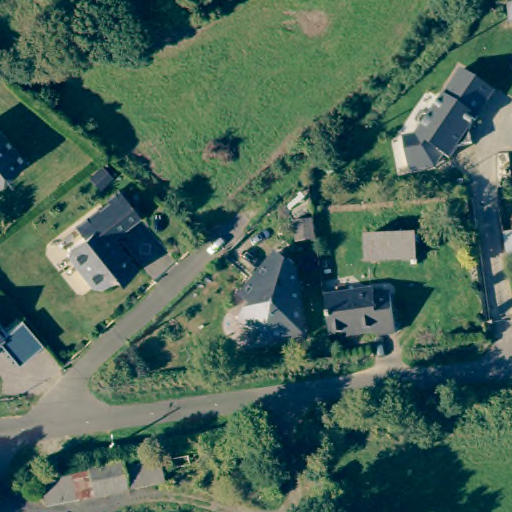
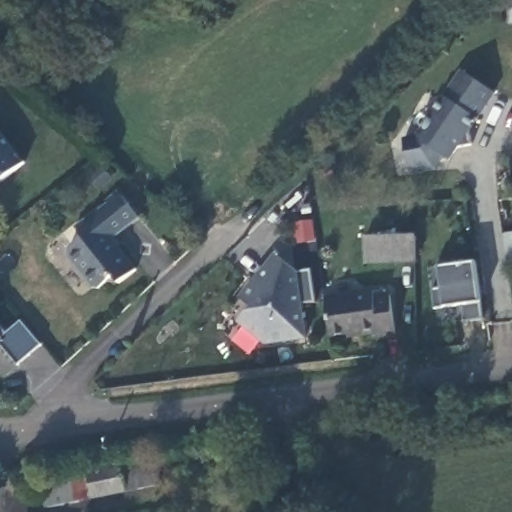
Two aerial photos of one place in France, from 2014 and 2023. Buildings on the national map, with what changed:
unchanged [(413,174),(412,167),(406,139),(418,137),(462,69),(496,90),(472,128),(475,143),(460,146),(452,158),(447,155),(438,169),(413,174)]
demolished [(507,151),(503,124),(512,123),(512,150),(507,151)]
unchanged [(0,175),(0,135),(20,159),(0,175)]
unchanged [(109,201),(107,199),(118,190),(139,214),(109,239),(116,246),(117,245),(137,268),(121,281),(115,274),(101,286),(94,285),(70,256),(70,247),(83,236),(76,228),(109,201)]
unchanged [(411,237),(412,262),(363,263),(363,239),(411,237)]
new [(442,287),(437,261),(456,258),(457,263),(476,260),(484,318),(464,321),(462,304),(435,308),(432,288),(442,287)]
unchanged [(306,340),(267,348),(242,329),(254,312),(244,304),(276,260),(297,275),(306,340)]
unchanged [(372,292),(372,296),(392,294),(396,333),(379,335),(378,328),(332,332),(326,297),(372,292)]
unchanged [(22,320),(42,344),(17,364),(0,342),(0,334),(4,339),(22,320)]
unchanged [(37,481),(125,463),(126,466),(166,458),(167,469),(155,471),(157,484),(42,508),(37,481)]
unchanged [(328,491),(316,494),(312,479),(326,476),(328,491)]
unchanged [(137,512),(167,505),(168,512),(137,512)]

